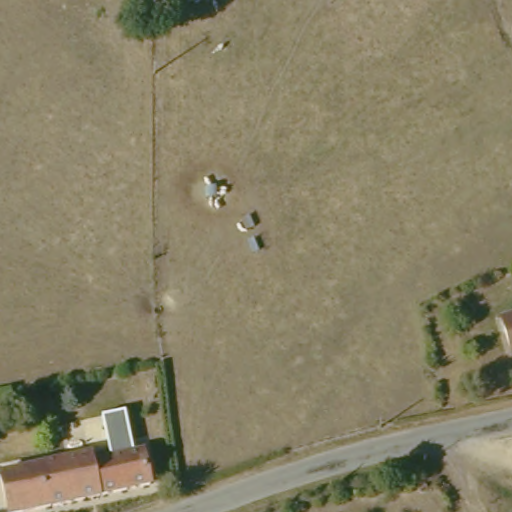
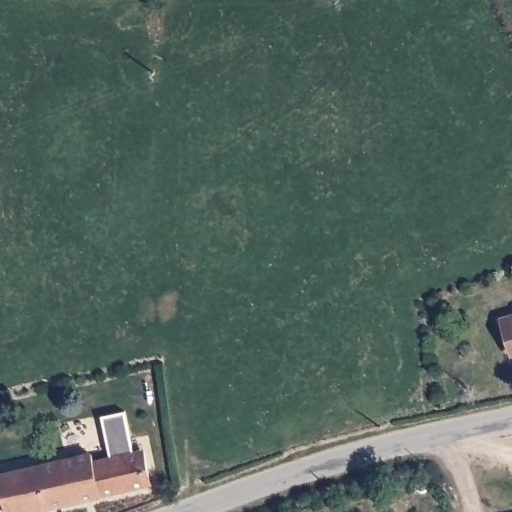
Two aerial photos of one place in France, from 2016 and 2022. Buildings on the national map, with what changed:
unchanged [(512,314),(512,349),(508,350),(500,318),(512,314)]
unchanged [(110,456),(100,415),(125,409),(134,451),(110,456)]
unchanged [(8,512),(0,475),(0,468),(91,449),(93,459),(142,449),(148,481),(8,512)]

